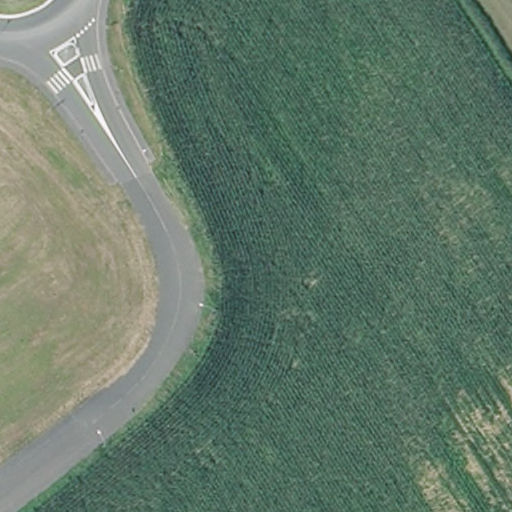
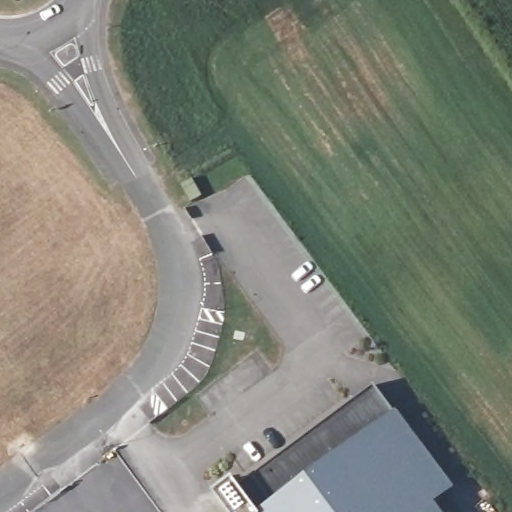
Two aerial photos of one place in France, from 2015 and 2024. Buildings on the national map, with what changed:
new [(217,491),(235,477),(240,483),(375,384),(396,413),(398,411),(454,488),(435,502),(442,512),(232,512),(217,491)]

